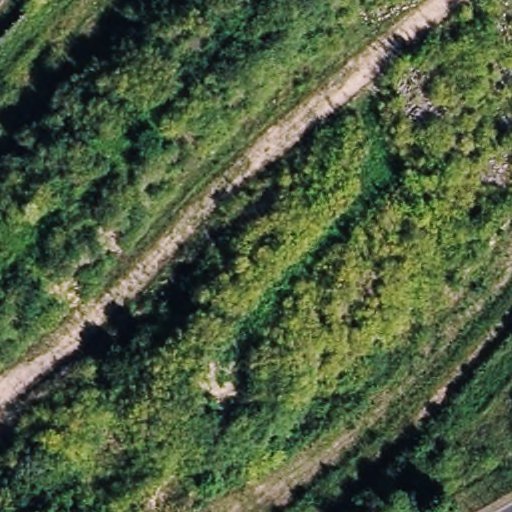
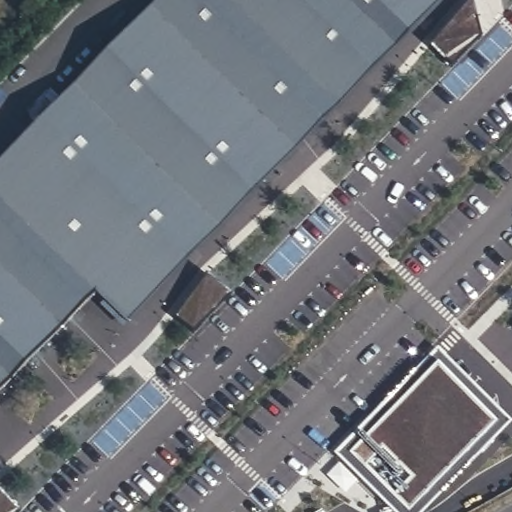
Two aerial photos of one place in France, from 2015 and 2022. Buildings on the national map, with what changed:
new [(157,0),(442,0),(338,107),(335,104),(295,150),(294,148),(129,320),(97,290),(92,291),(0,386),(0,161),(157,0)]
new [(476,3),(488,14),(486,44),(454,77),(432,54),(476,3)]
new [(209,278),(235,299),(195,339),(175,323),(209,278)]
new [(438,365),(494,421),(409,509),(351,452),(438,365)]
new [(20,512),(0,512),(0,478),(20,512)]

